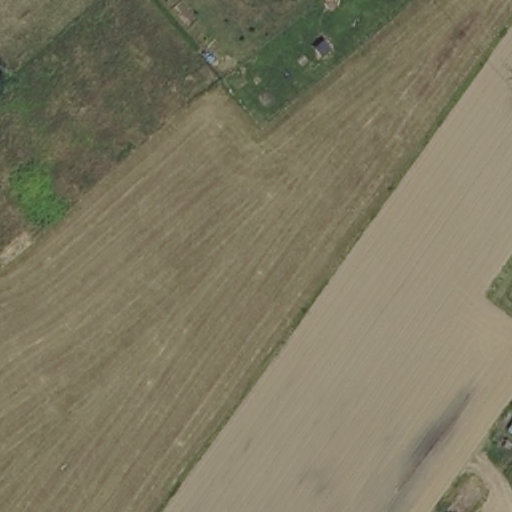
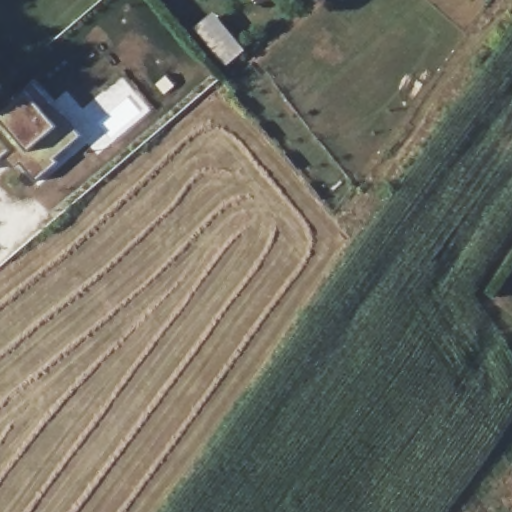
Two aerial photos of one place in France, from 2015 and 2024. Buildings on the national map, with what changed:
new [(56,163),(35,181),(18,161),(11,167),(1,156),(0,156),(0,116),(27,93),(33,87),(57,115),(60,112),(80,136),(52,159),(56,163)]

